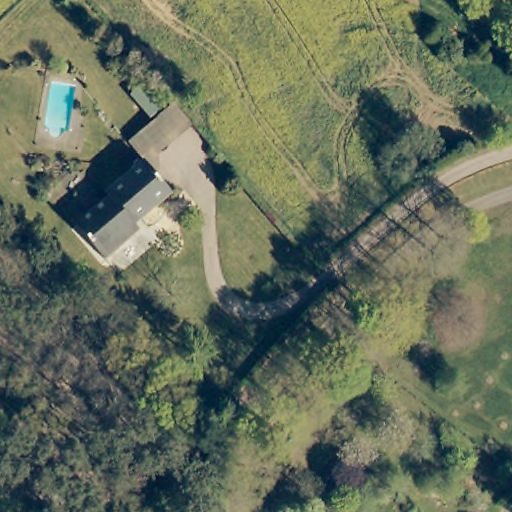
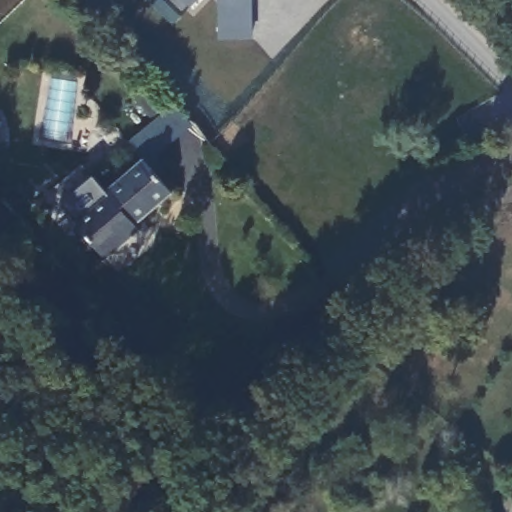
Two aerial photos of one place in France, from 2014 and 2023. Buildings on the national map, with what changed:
new [(191,5),(182,14),(168,0),(196,0),(191,5)]
new [(251,37),(220,38),(220,0),(251,0),(251,37)]
unchanged [(155,151),(156,167),(152,171),(140,156),(125,141),(172,99),(172,100),(190,120),(155,151)]
unchanged [(170,191),(131,225),(136,230),(105,257),(73,222),(105,193),(102,190),(140,156),(152,171),(170,191)]

